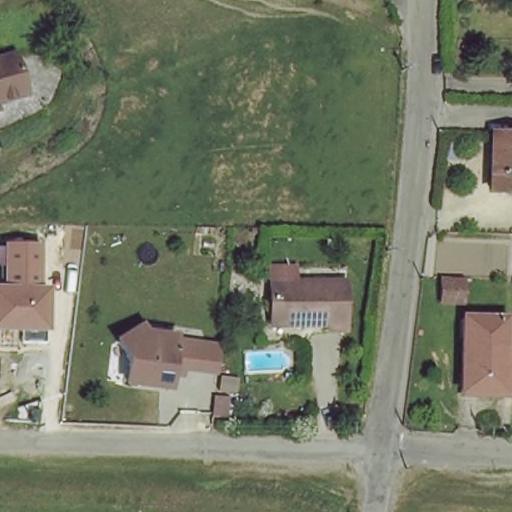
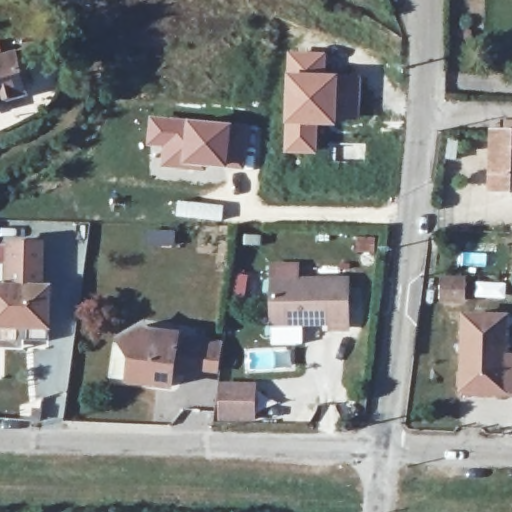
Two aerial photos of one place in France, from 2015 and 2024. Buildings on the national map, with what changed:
unchanged [(17,51),(28,86),(0,96),(0,56),(17,51)]
new [(337,126),(319,126),(284,124),(285,72),(286,51),(326,51),(327,73),(339,73),(337,126)]
new [(148,115),(233,123),(228,169),(160,168),(162,148),(145,146),(148,115)]
new [(284,124),(319,126),(318,155),(283,154),(284,124)]
unchanged [(512,134),(512,188),(488,186),(493,133),(512,134)]
new [(177,200),(223,205),(222,221),(175,216),(177,200)]
new [(145,228),(176,230),(175,247),(144,245),(145,228)]
unchanged [(52,332),(47,331),(48,343),(23,342),(24,330),(0,329),(0,283),(5,283),(6,265),(0,264),(0,245),(9,245),(8,241),(45,242),(44,285),(55,286),(52,332)]
unchanged [(274,265),(300,266),(300,279),(347,281),(347,327),(328,326),(328,319),(272,318),(274,265)]
unchanged [(465,280),(464,299),(439,300),(441,279),(465,280)]
unchanged [(512,349),(512,391),(456,389),(458,308),(508,310),(508,349),(512,349)]
unchanged [(169,386),(126,382),(128,358),(113,341),(133,321),(139,328),(206,334),(222,336),(217,370),(203,368),(170,366),(169,386)]
new [(253,386),(252,421),(220,420),(221,385),(253,386)]

